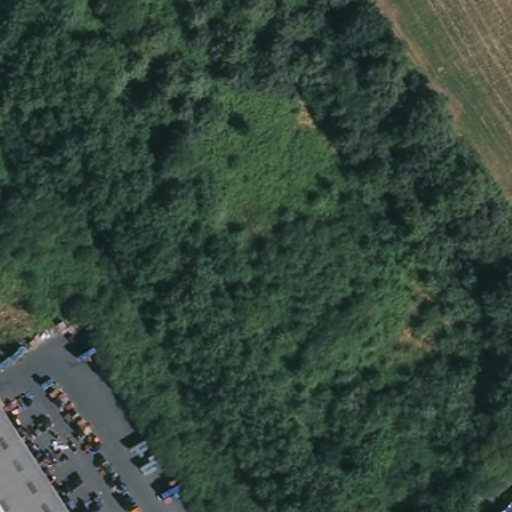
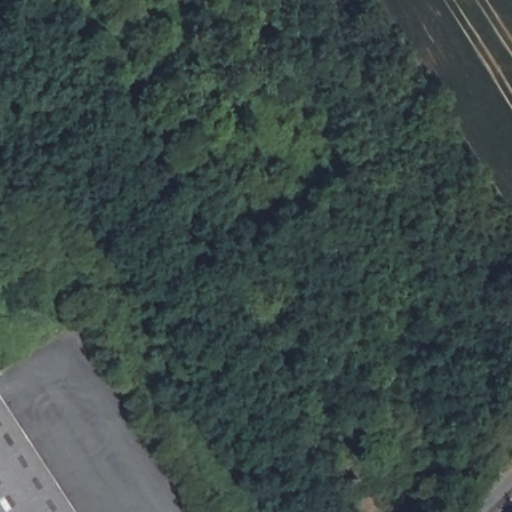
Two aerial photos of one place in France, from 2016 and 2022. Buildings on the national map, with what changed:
unchanged [(66,512),(0,512),(0,411),(66,512)]

